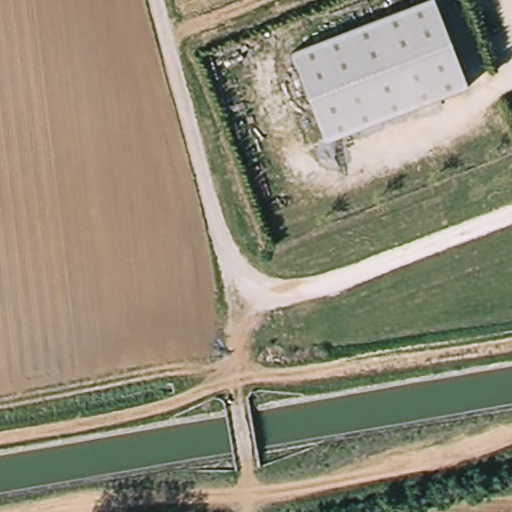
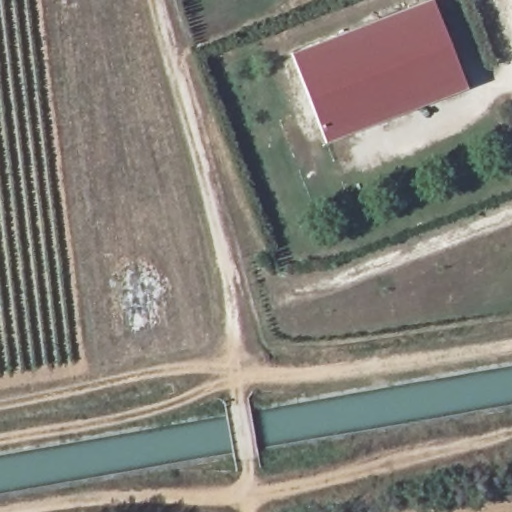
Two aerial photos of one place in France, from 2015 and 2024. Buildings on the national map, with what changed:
unchanged [(293,50),(430,0),(435,0),(467,88),(325,140),(293,50)]

